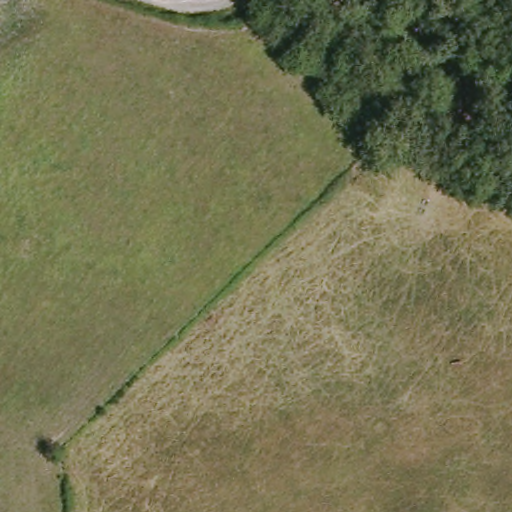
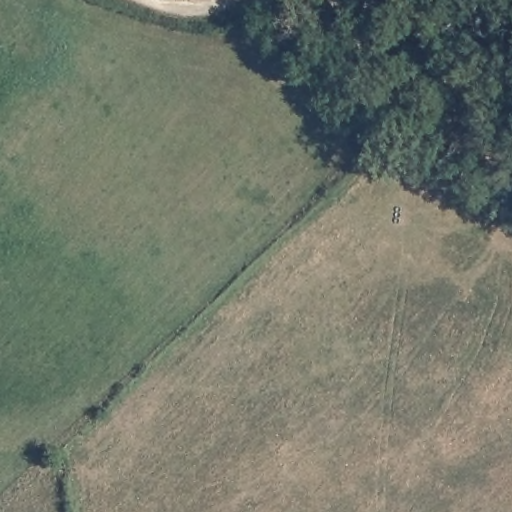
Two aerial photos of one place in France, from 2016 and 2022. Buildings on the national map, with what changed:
unchanged [(474,116),(439,99),(447,78),(484,95),(474,116)]

